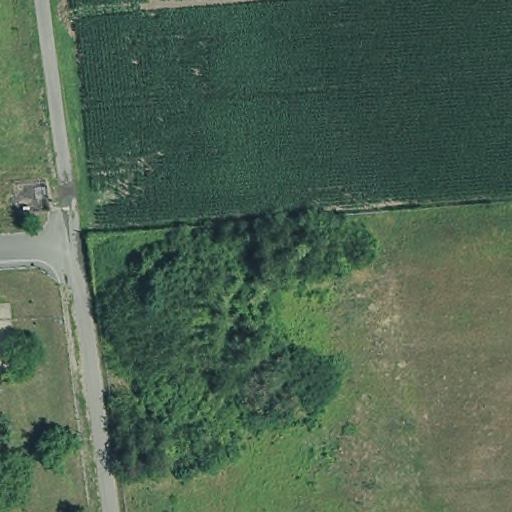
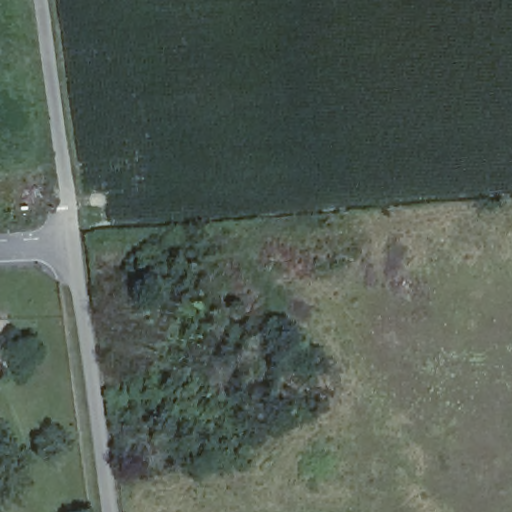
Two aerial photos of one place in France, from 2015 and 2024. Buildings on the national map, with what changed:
unchanged [(16,465),(0,466),(0,455),(15,454),(16,465)]

